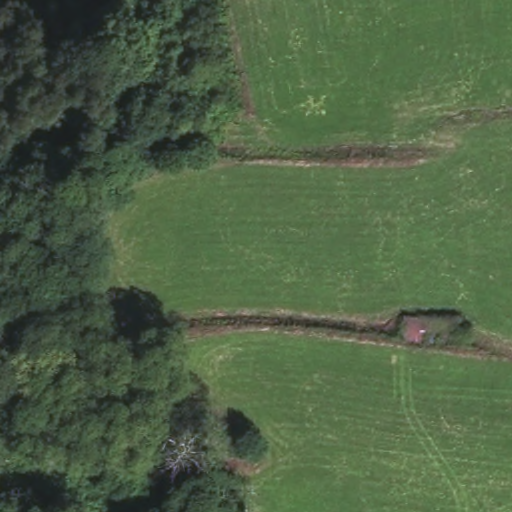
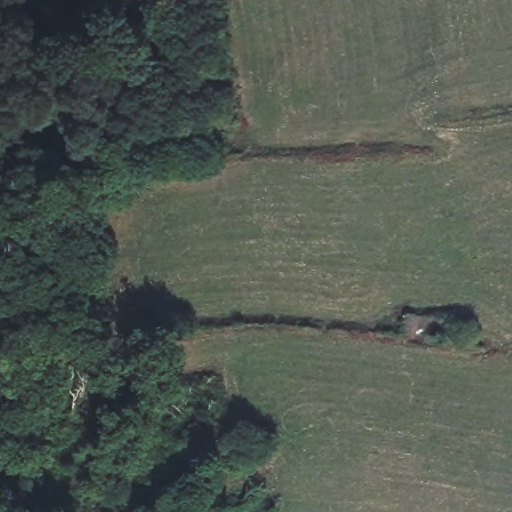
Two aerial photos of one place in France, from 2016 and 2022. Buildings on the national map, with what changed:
unchanged [(462,322),(462,351),(402,346),(403,317),(462,322)]

